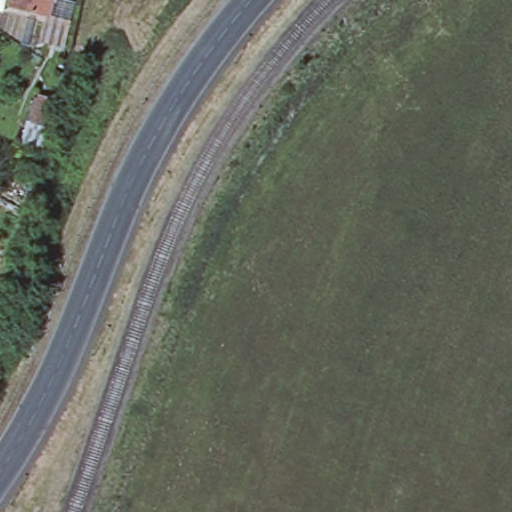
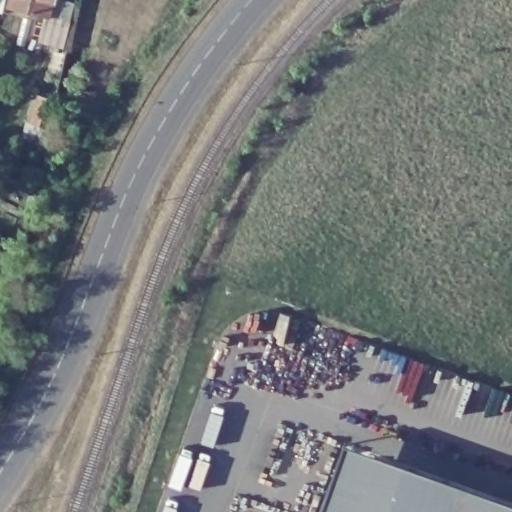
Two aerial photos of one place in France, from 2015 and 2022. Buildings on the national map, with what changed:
unchanged [(42,26),(1,14),(6,0),(50,0),(42,26)]
new [(512,511),(512,512),(326,512),(349,448),(512,511)]

